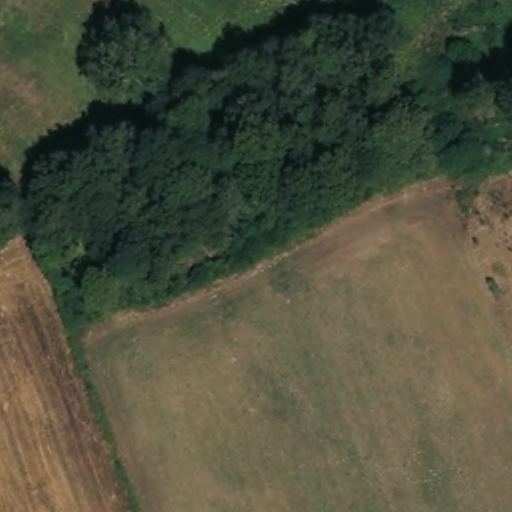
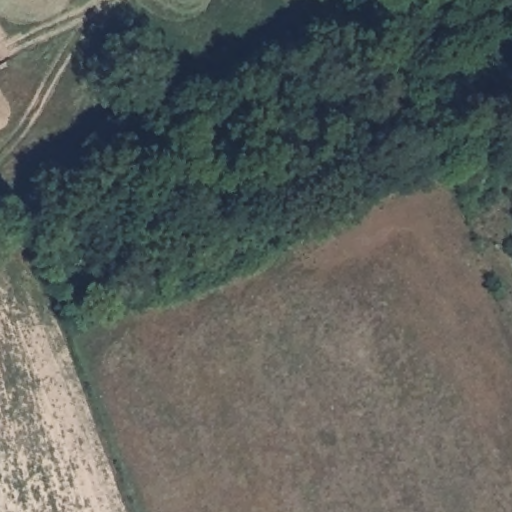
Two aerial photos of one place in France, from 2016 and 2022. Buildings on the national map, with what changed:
[]

